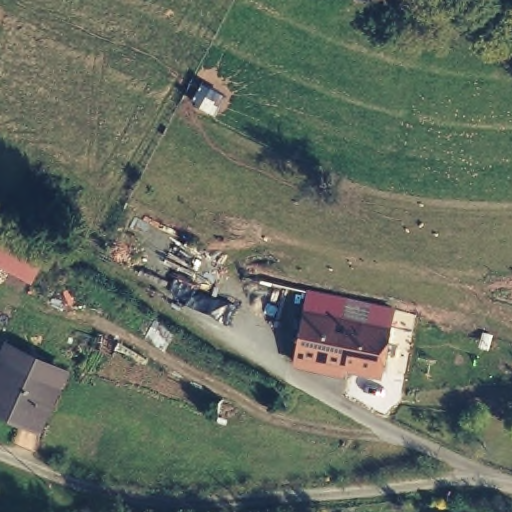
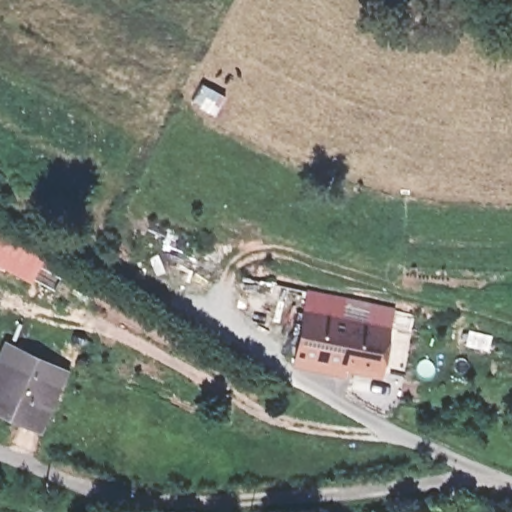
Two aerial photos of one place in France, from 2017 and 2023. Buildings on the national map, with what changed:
unchanged [(46,252),(31,280),(0,262),(0,227),(46,252)]
unchanged [(291,356),(292,353),(305,310),(389,322),(391,323),(382,367),(323,356),(323,358),(297,352),(296,357),(291,356)]
unchanged [(45,412),(0,395),(0,355),(2,351),(62,373),(45,412)]

